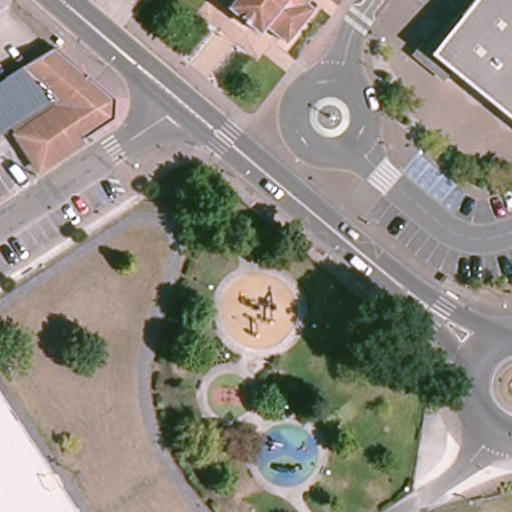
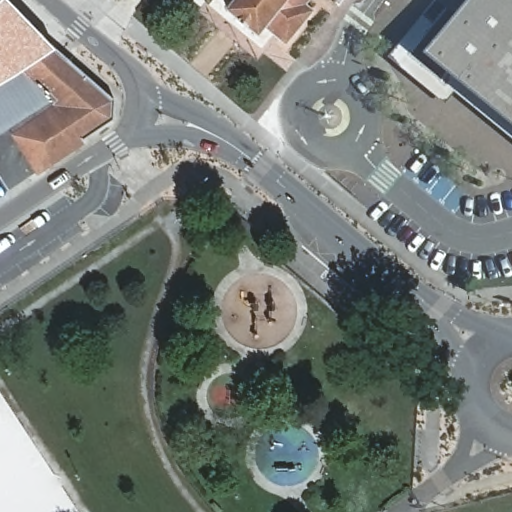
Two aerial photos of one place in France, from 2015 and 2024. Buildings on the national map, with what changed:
new [(54,47),(0,81),(0,0),(9,0),(54,47)]
unchanged [(303,1),(312,8),(286,41),(264,24),(257,31),(227,7),(233,0),(304,0),(303,1)]
unchanged [(452,72),(445,80),(419,59),(453,16),(462,24),(483,0),(512,0),(512,120),(452,72)]
unchanged [(115,98),(115,119),(83,139),(62,106),(58,103),(53,99),(12,126),(0,134),(0,81),(55,47),(115,98)]
unchanged [(83,139),(38,168),(26,147),(17,134),(62,106),(83,139)]

